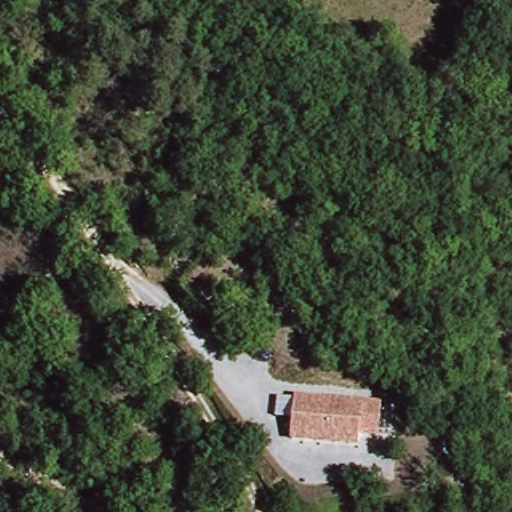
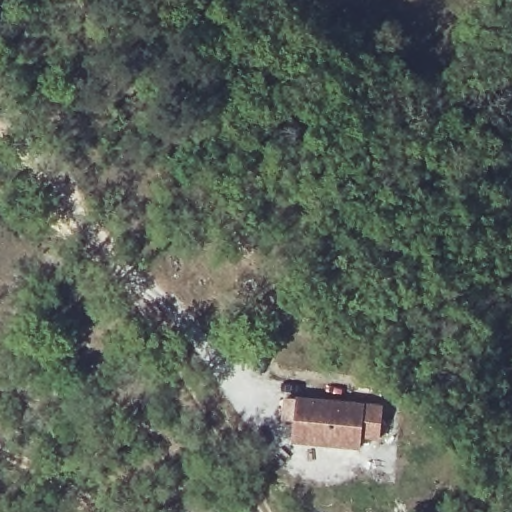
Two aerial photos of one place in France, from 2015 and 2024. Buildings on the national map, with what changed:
unchanged [(363,451),(294,441),(300,398),(388,411),(383,443),(365,440),(363,451)]

